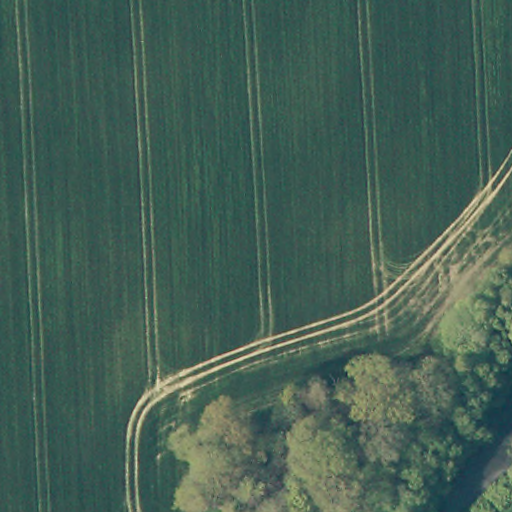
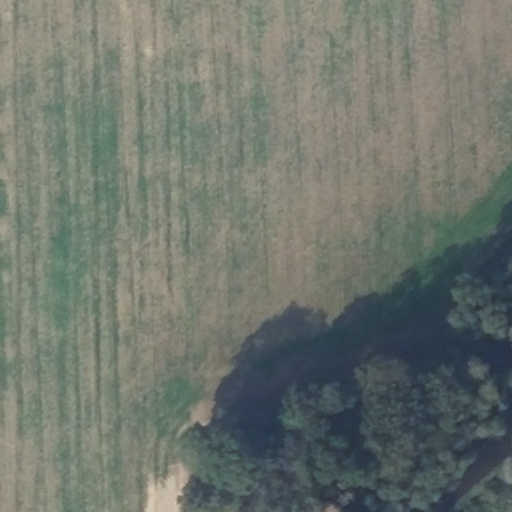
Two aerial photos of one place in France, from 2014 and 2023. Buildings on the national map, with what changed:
[]

